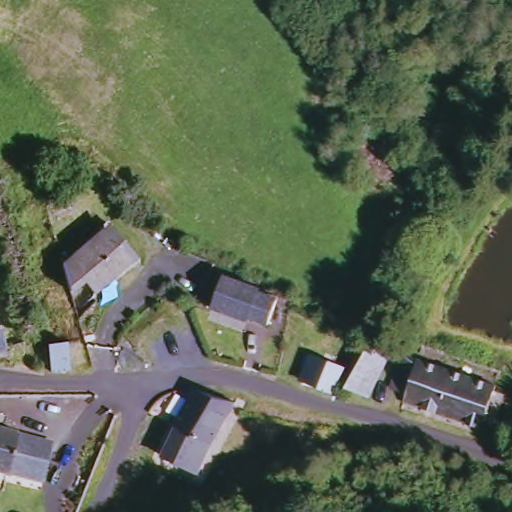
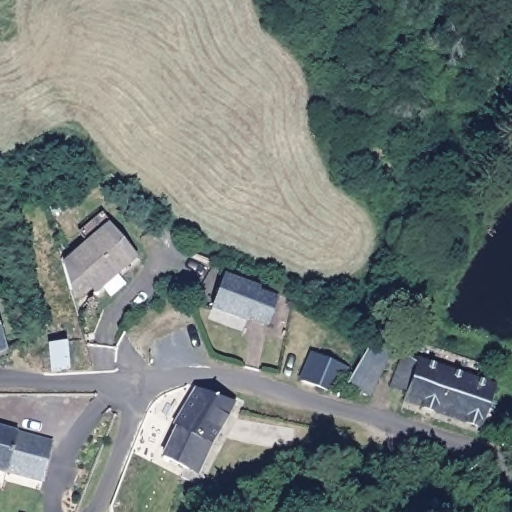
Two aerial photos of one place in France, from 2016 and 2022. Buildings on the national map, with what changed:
unchanged [(64,255),(69,261),(107,229),(129,260),(89,292),(81,282),(67,292),(56,261),(64,255)]
unchanged [(259,292),(246,323),(210,308),(223,277),(259,292)]
unchanged [(50,370),(51,340),(70,340),(71,368),(50,370)]
unchanged [(0,342),(2,347),(0,348),(0,342)]
unchanged [(383,354),(367,396),(345,388),(370,349),(383,354)]
unchanged [(492,419),(485,417),(483,426),(405,401),(407,391),(391,385),(402,352),(419,357),(495,382),(495,385),(502,387),(492,419)]
unchanged [(346,373),(344,387),(335,397),(313,390),(321,366),(346,373)]
unchanged [(210,444),(194,475),(157,453),(171,428),(167,425),(167,423),(187,391),(230,405),(210,444)]
unchanged [(20,427),(52,435),(42,472),(10,464),(10,467),(0,465),(0,421),(20,426),(20,427)]

